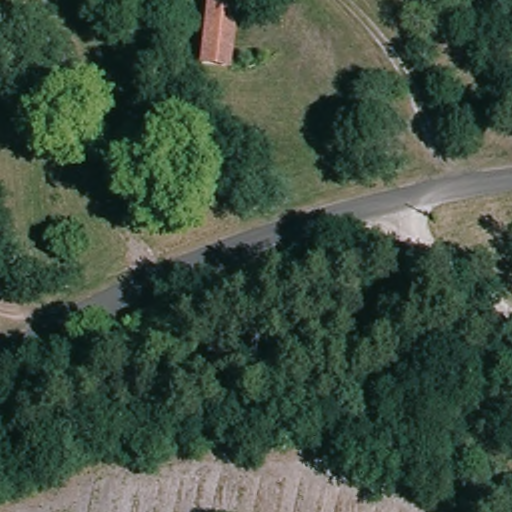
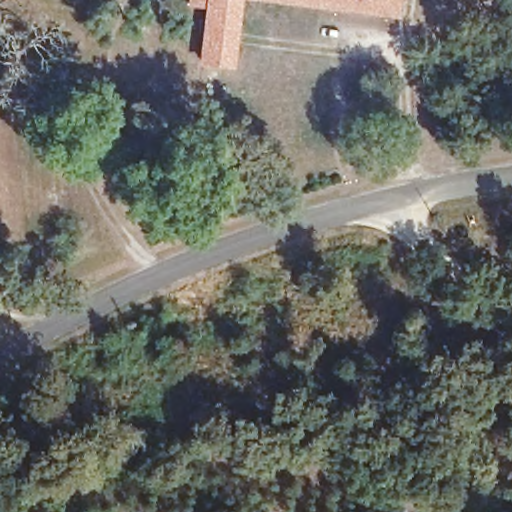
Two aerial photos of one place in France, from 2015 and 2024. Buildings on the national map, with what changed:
unchanged [(205,0),(240,0),(233,69),(199,64),(205,0)]
new [(252,0),(399,0),(397,18),(257,0),(252,0)]

